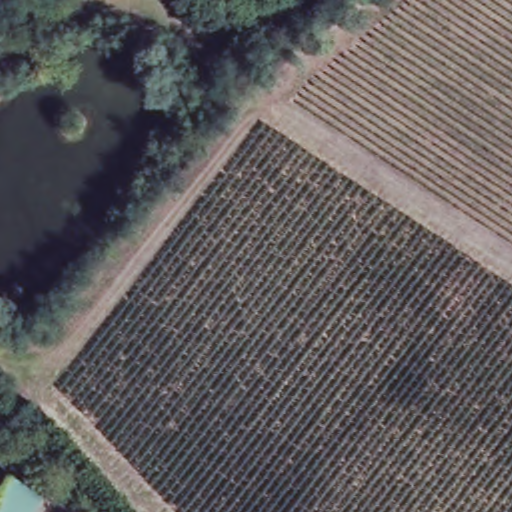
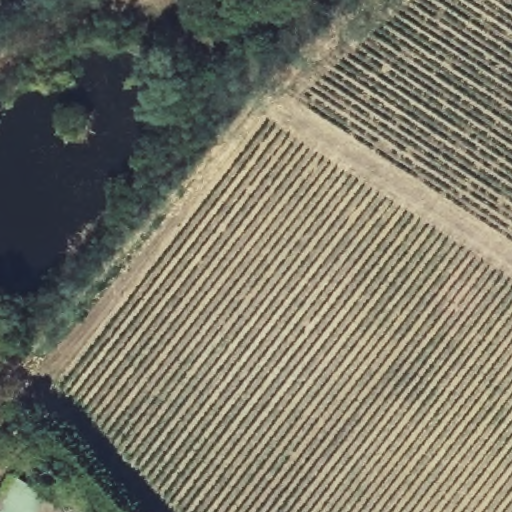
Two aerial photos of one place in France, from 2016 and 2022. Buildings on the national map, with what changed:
unchanged [(0,499),(12,477),(51,498),(43,512),(0,512),(0,499)]

